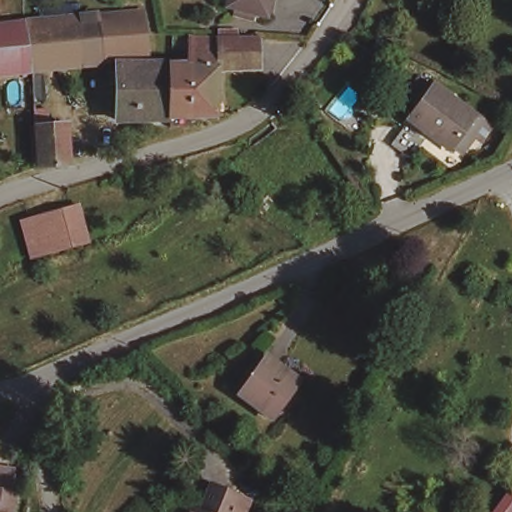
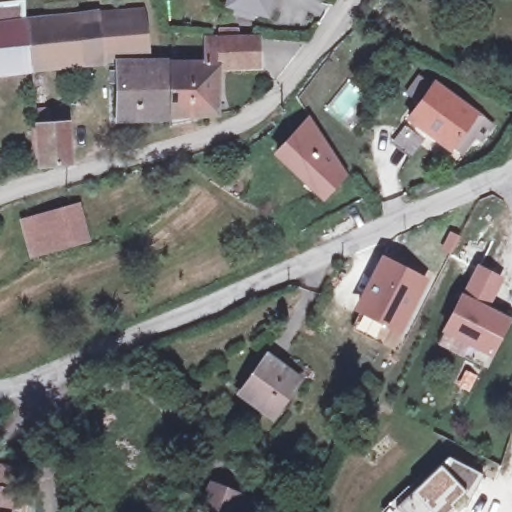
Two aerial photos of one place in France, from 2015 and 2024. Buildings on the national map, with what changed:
unchanged [(227,5),(229,0),(271,0),(266,16),(227,5)]
unchanged [(27,24),(27,23),(140,12),(143,50),(30,65),(27,24)]
unchanged [(30,65),(0,69),(0,26),(27,23),(27,24),(30,65)]
unchanged [(192,41),(260,43),(260,68),(217,70),(218,49),(192,48),(192,41)]
unchanged [(216,113),(170,115),(172,65),(190,66),(192,48),(218,49),(217,70),(216,113)]
unchanged [(116,117),(116,64),(172,65),(170,115),(116,117)]
unchanged [(451,139),(449,142),(405,114),(415,99),(401,90),(412,71),(427,80),(428,78),(472,105),(488,116),(478,131),(472,127),(460,145),(451,139)]
unchanged [(43,163),(42,113),(51,112),(52,120),(68,120),(70,162),(43,163)]
new [(272,154),(308,116),(347,175),(324,201),(272,154)]
unchanged [(75,203),(86,239),(55,249),(37,254),(28,217),(43,212),(75,203)]
new [(422,279),(397,326),(360,306),(385,259),(422,279)]
new [(503,278),(490,307),(512,318),(493,358),(442,332),(460,293),(477,266),(503,278)]
unchanged [(242,388),(267,351),(299,373),(273,410),(242,388)]
new [(450,461),(485,480),(468,512),(467,512),(466,511),(465,512),(398,512),(397,512),(450,461)]
unchanged [(250,491),(263,499),(256,512),(185,512),(195,493),(210,503),(225,476),(250,491)]
unchanged [(0,485),(18,487),(15,512),(0,512),(0,485)]
demolished [(512,499),(512,512),(498,512),(509,497),(512,499)]

